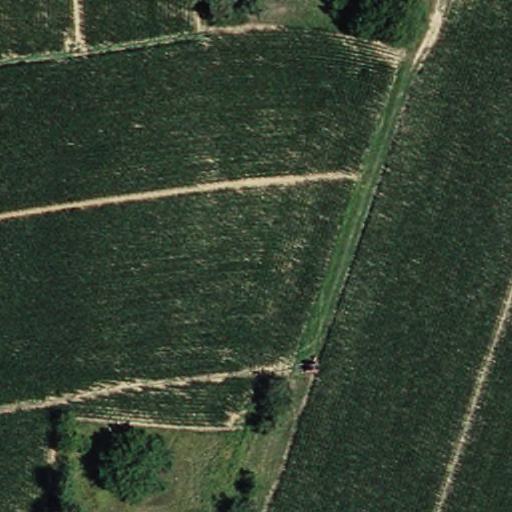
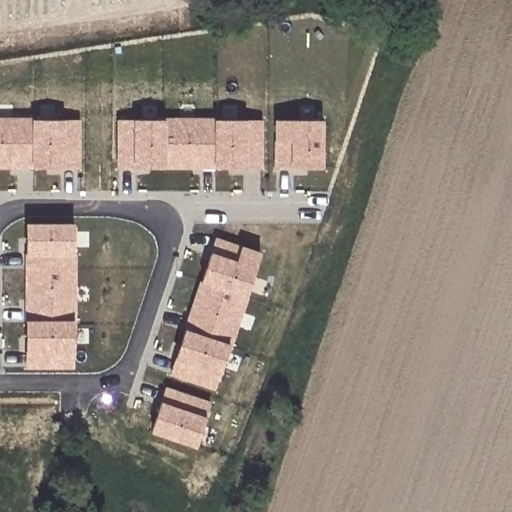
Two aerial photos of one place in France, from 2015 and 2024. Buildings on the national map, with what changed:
new [(31,117),(31,120),(65,120),(80,120),(80,167),(64,168),(32,169),(0,169),(0,117),(31,117)]
new [(134,119),(165,119),(165,117),(214,118),(214,120),(247,120),(262,120),(262,169),(247,168),(214,169),(164,169),(131,168),(117,167),(117,120),(134,119)]
new [(323,120),(322,169),(289,168),(274,167),(274,140),(274,120),(323,120)]
new [(25,355),(25,320),(25,255),(25,223),(74,223),(74,256),(76,256),(76,321),(74,321),(74,353),(74,369),(26,369),(25,355)]
new [(174,361),(184,328),(182,328),(199,281),(201,282),(211,252),(215,236),(241,246),(261,253),(231,345),(220,375),(215,391),(169,375),(174,361)]
new [(161,401),(165,386),(210,401),(205,417),(195,448),(150,432),(161,401)]

